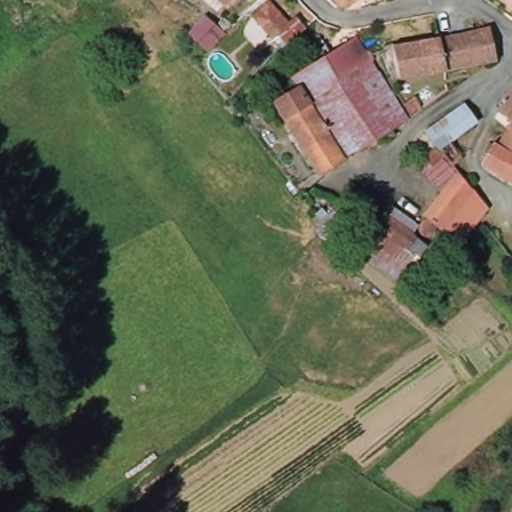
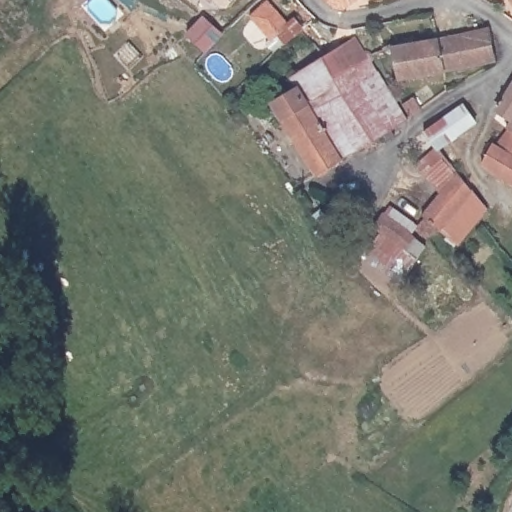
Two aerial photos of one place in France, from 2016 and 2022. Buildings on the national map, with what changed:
unchanged [(216,0),(228,0),(226,2),(220,3),(216,0)]
unchanged [(327,10),(317,0),(354,0),(337,12),(327,10)]
unchanged [(505,0),(512,0),(512,10),(505,0)]
unchanged [(287,41),(278,49),(250,15),(262,2),(285,21),(292,15),(301,29),(287,41)]
unchanged [(220,40),(203,58),(186,42),(201,24),(220,40)]
unchanged [(395,77),(390,46),(446,34),(487,25),(493,59),(395,77)]
unchanged [(382,48),(373,49),(373,50),(375,52),(369,55),(371,59),(370,62),(366,62),(365,62),(361,58),(355,62),(347,67),(342,70),(333,76),(324,60),(321,55),(353,35),(358,45),(378,36),(382,48)]
unchanged [(324,60),(333,76),(342,70),(347,67),(355,62),(361,58),(365,62),(366,62),(370,62),(376,73),(379,72),(389,90),(407,120),(356,151),(317,175),(273,104),(296,88),(288,75),(321,55),(324,60)]
unchanged [(505,130),(510,120),(495,112),(510,86),(512,83),(512,134),(505,130)]
unchanged [(412,96),(420,107),(410,115),(402,104),(412,96)]
unchanged [(423,130),(461,103),(473,121),(449,141),(469,166),(468,170),(475,177),(467,184),(452,167),(451,169),(423,130)]
unchanged [(226,110),(231,116),(229,118),(225,121),(221,115),(225,111),(226,110)]
unchanged [(481,169),(493,146),(495,148),(505,130),(512,134),(512,186),(481,169)]
unchanged [(437,226),(431,234),(426,235),(421,234),(417,230),(416,224),(423,216),(420,212),(451,169),(452,167),(467,184),(473,190),(440,229),(437,226)]
unchanged [(489,209),(458,242),(440,229),(473,190),(489,209)]
unchanged [(373,225),(383,210),(405,226),(424,246),(420,250),(415,258),(373,225)]

